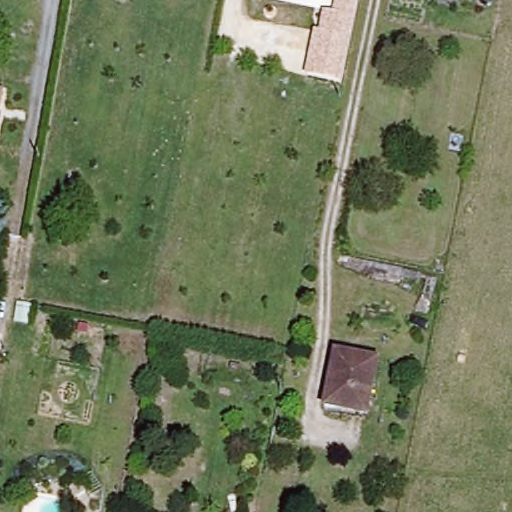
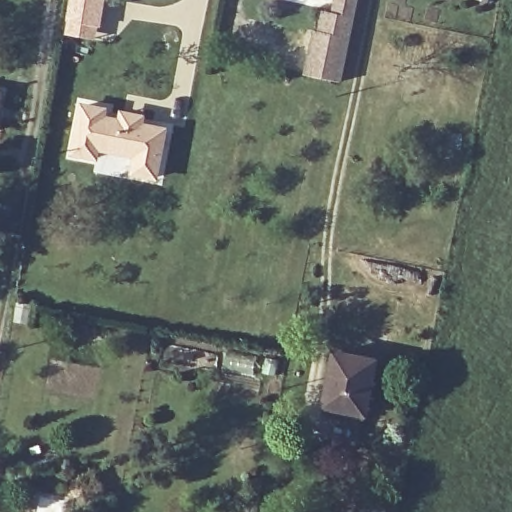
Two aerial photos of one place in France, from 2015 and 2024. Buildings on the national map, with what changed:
new [(66,24),(70,0),(103,0),(98,30),(66,24)]
unchanged [(306,73),(314,28),(319,30),(323,9),(333,10),(335,0),(359,0),(343,80),(306,73)]
unchanged [(2,91),(0,102),(0,90),(2,91)]
new [(64,159),(77,100),(147,114),(146,121),(171,126),(159,184),(127,178),(93,172),(95,165),(64,159)]
unchanged [(340,351),(378,360),(367,412),(328,402),(340,351)]

